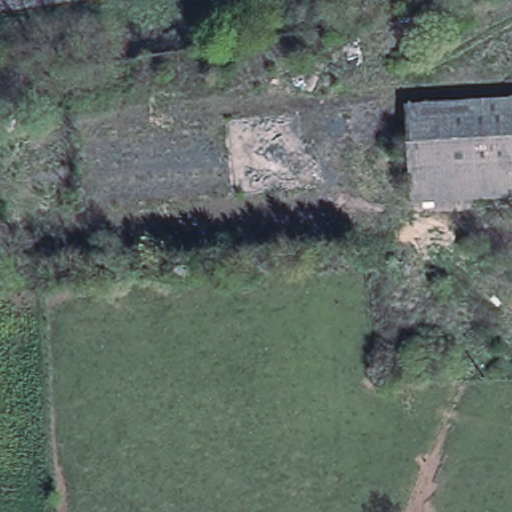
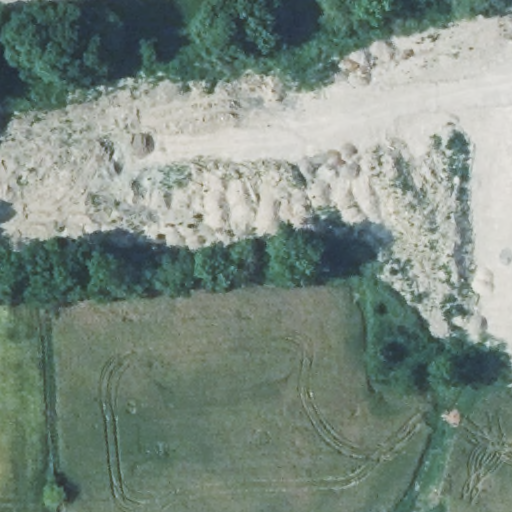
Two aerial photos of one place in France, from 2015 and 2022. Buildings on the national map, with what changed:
demolished [(407,98),(512,95),(512,190),(413,195),(407,98)]

